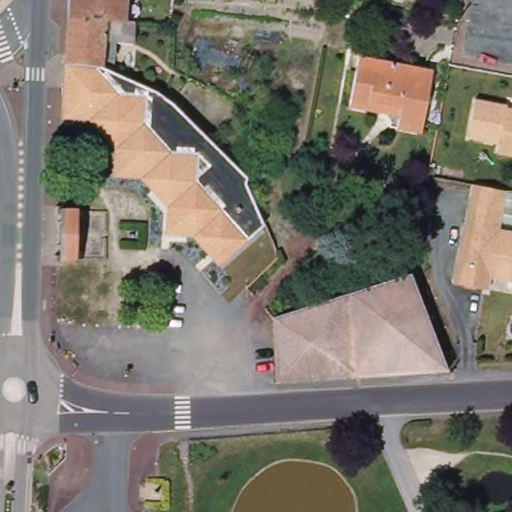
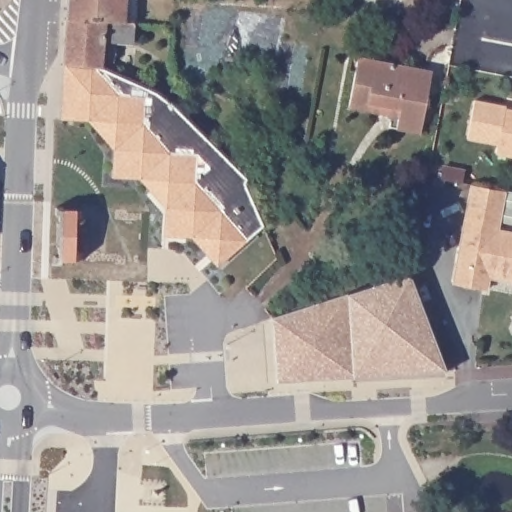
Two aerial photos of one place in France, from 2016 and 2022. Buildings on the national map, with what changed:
unchanged [(125,21),(67,19),(69,0),(126,0),(125,21)]
unchanged [(133,42),(115,42),(114,59),(102,57),(102,67),(69,65),(64,65),(67,19),(125,21),(133,21),(133,42)]
unchanged [(350,99),(357,56),(427,69),(433,71),(429,91),(421,132),(396,127),(398,116),(348,107),(350,99)]
unchanged [(222,152),(229,159),(245,176),(245,180),(246,183),(264,225),(222,260),(197,232),(169,230),(171,202),(145,172),(137,172),(118,171),(119,144),(93,116),(66,113),(69,65),(102,67),(104,68),(158,92),(173,104),(222,152)]
unchanged [(506,109),(512,110),(512,158),(495,155),(496,146),(466,140),(474,99),(507,106),(506,109)]
unchanged [(492,288),(458,282),(476,183),(509,189),(502,229),(512,231),(512,279),(494,276),(492,288)]
unchanged [(85,258),(63,258),(63,263),(53,263),(53,253),(59,253),(59,214),(59,212),(55,212),(55,209),(55,205),(64,205),(64,209),(85,210),(85,258)]
unchanged [(446,363),(326,371),(314,372),(304,341),(294,309),(410,272),(446,363)]
unchanged [(314,372),(283,374),(278,314),(294,309),(304,341),(314,372)]

